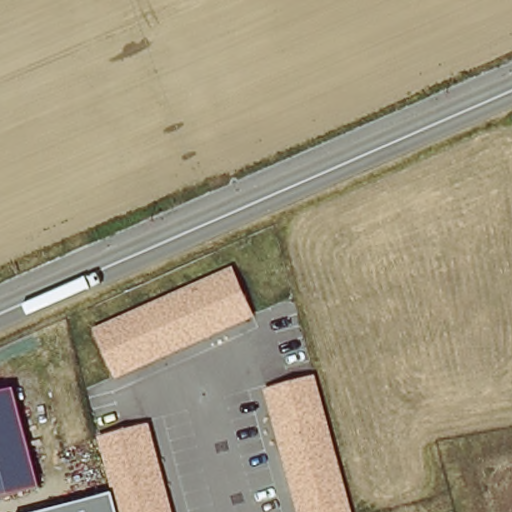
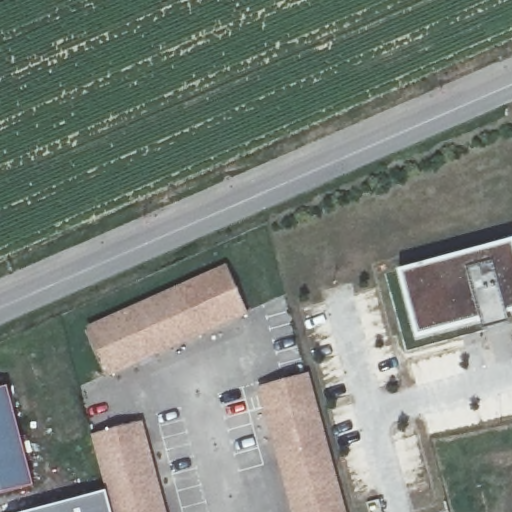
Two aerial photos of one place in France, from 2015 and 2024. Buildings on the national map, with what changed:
new [(510,325),(483,333),(480,321),(417,339),(399,271),(512,242),(512,312),(507,313),(510,325)]
unchanged [(228,264),(251,315),(109,377),(89,326),(228,264)]
unchanged [(349,512),(292,512),(259,388),(310,373),(349,512)]
unchanged [(35,487),(0,495),(0,390),(9,388),(35,487)]
unchanged [(30,512),(108,493),(94,436),(145,421),(169,512),(30,512)]

